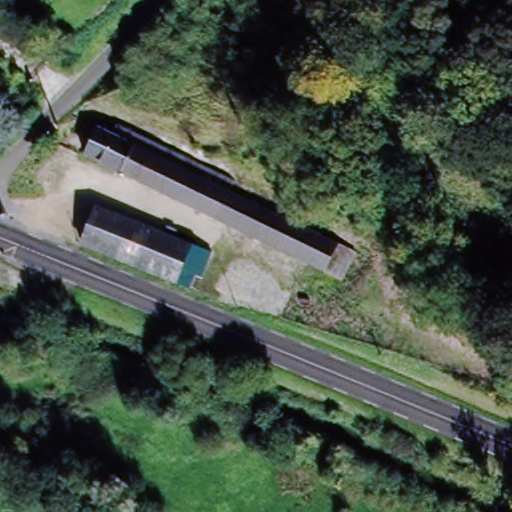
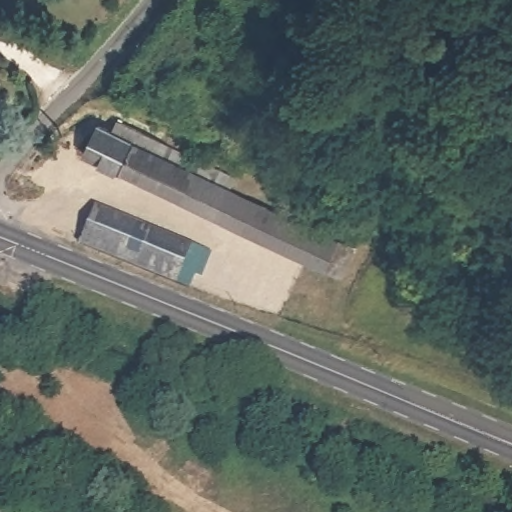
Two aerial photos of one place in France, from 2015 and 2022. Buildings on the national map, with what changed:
unchanged [(181,207),(83,162),(97,133),(194,177),(181,207)]
unchanged [(194,177),(229,192),(215,222),(181,207),(194,177)]
unchanged [(229,192),(332,240),(318,270),(215,222),(229,192)]
unchanged [(97,209),(184,245),(169,281),(82,245),(97,209)]

